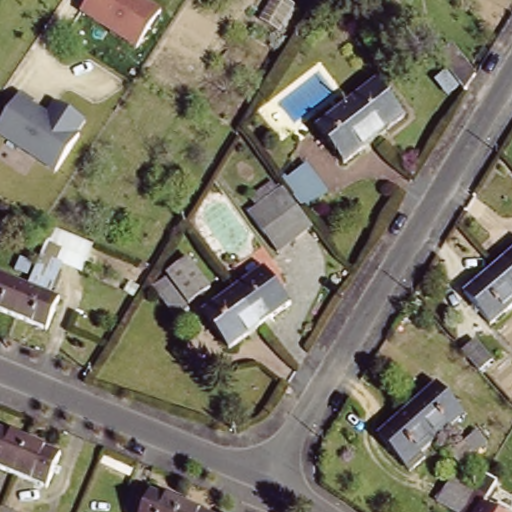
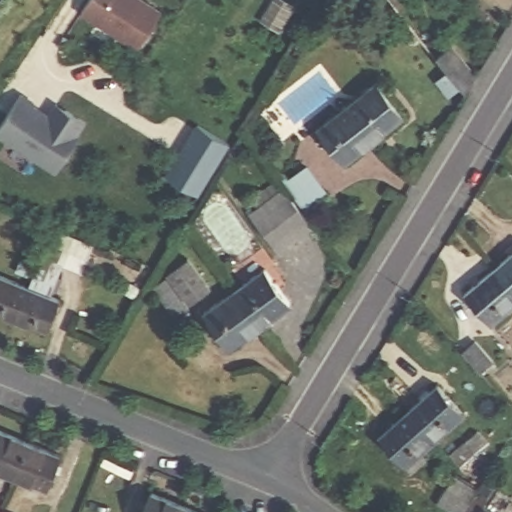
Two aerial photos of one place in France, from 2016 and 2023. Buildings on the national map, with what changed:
unchanged [(147,0),(163,11),(138,48),(80,11),(88,0),(147,0)]
unchanged [(278,0),(296,11),(278,40),(258,27),(274,0),(278,0)]
unchanged [(438,58),(453,46),(477,76),(465,93),(438,58)]
unchanged [(354,98),(383,75),(411,111),(382,134),(354,98)]
unchanged [(57,172),(0,136),(0,122),(19,93),(22,90),(37,99),(35,103),(49,111),(56,99),(88,119),(57,172)]
unchanged [(382,134),(350,158),(323,121),(354,98),(382,134)]
new [(200,196),(167,175),(197,124),(232,145),(200,196)]
unchanged [(267,233),(252,214),(286,187),(295,199),(318,181),(328,193),(305,211),(316,225),(293,244),(282,253),(267,233)]
unchanged [(55,289),(52,288),(37,282),(32,281),(52,226),(94,242),(83,272),(64,265),(55,289)]
unchanged [(502,264),(512,254),(512,276),(502,264)]
unchanged [(498,321),(472,290),(502,264),(512,276),(512,309),(498,321)]
unchanged [(268,267),(279,282),(295,304),(264,327),(237,290),(268,267)]
unchanged [(0,304),(0,282),(5,270),(37,282),(24,314),(0,304)]
unchanged [(173,287),(194,271),(208,290),(187,306),(173,287)]
unchanged [(37,282),(67,294),(55,326),(24,314),(37,282)]
unchanged [(264,327),(232,350),(205,313),(237,290),(264,327)]
unchanged [(187,311),(175,319),(161,299),(172,292),(187,311)]
unchanged [(467,352),(480,341),(500,364),(487,375),(467,352)]
unchanged [(435,441),(408,411),(439,384),(465,415),(435,442),(435,441)]
unchanged [(435,441),(435,442),(407,466),(380,435),(408,411),(435,441)]
unchanged [(0,425),(32,438),(17,473),(0,465),(0,425)]
unchanged [(490,443),(478,453),(467,441),(479,431),(490,443)]
unchanged [(32,438),(63,451),(49,486),(17,473),(32,438)]
unchanged [(487,504),(501,512),(465,512),(445,501),(455,486),(462,475),(477,484),(483,488),(482,492),(491,498),(487,504)]
unchanged [(158,492),(191,506),(189,512),(149,512),(158,492)]
unchanged [(8,502),(30,511),(29,512),(4,512),(8,502)]
unchanged [(0,507),(0,503),(2,504),(0,507)]
unchanged [(191,506),(205,512),(189,512),(191,506)]

